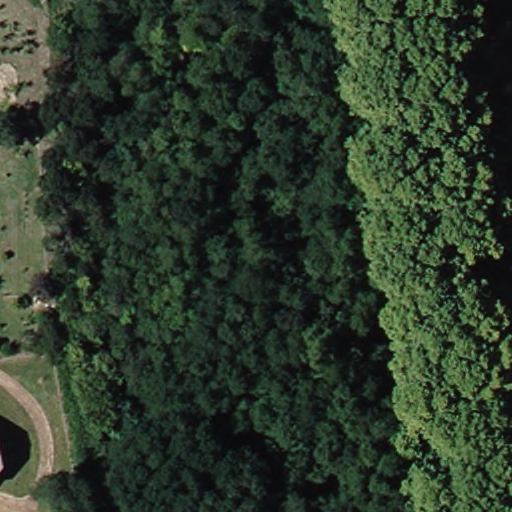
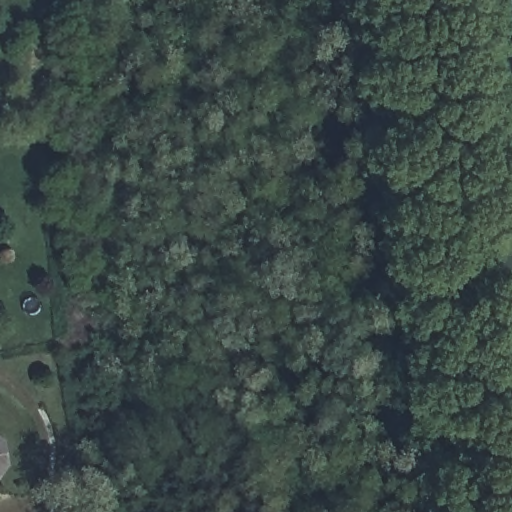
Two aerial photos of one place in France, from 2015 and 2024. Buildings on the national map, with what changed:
unchanged [(3,439),(0,440),(0,436),(3,439)]
unchanged [(3,439),(4,441),(8,463),(0,475),(0,440),(3,439)]

